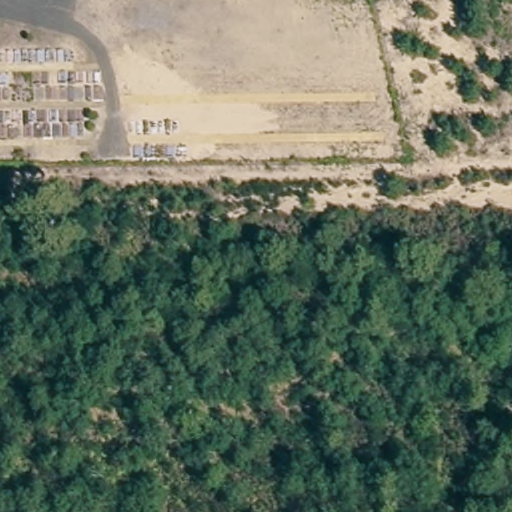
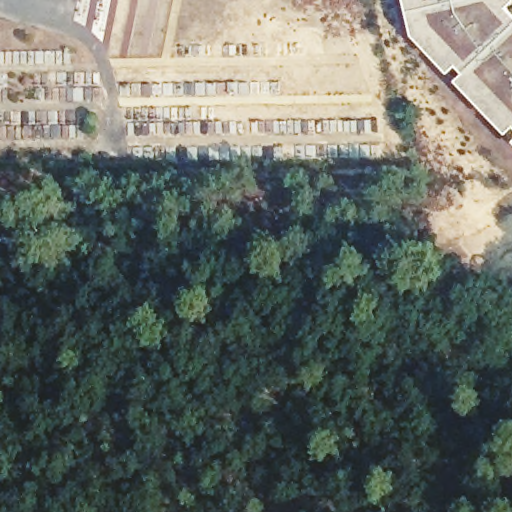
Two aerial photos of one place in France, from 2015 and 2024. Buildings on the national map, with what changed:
new [(410,0),(512,0),(512,132),(418,33),(410,0)]

